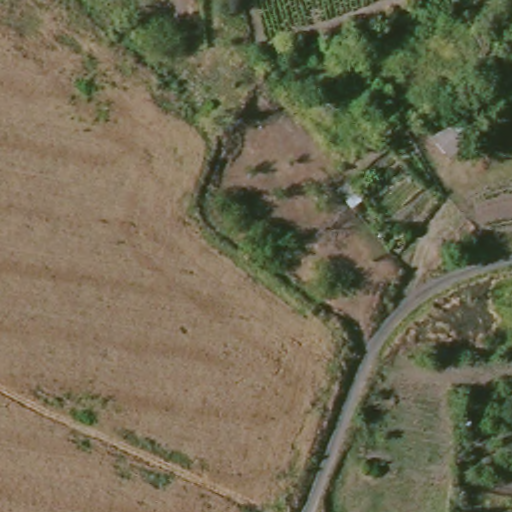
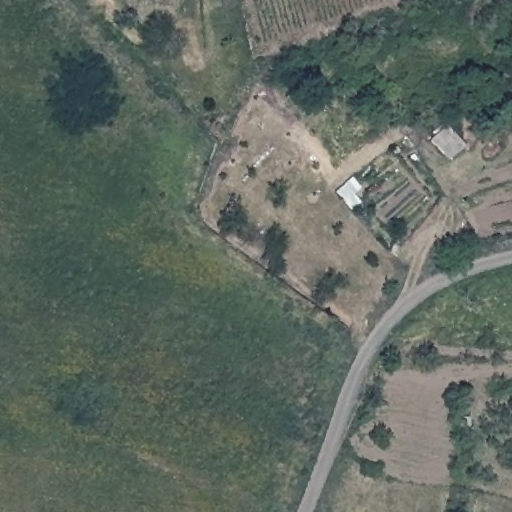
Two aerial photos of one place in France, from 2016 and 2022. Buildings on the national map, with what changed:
unchanged [(463,149),(445,160),(428,135),(446,123),(463,149)]

